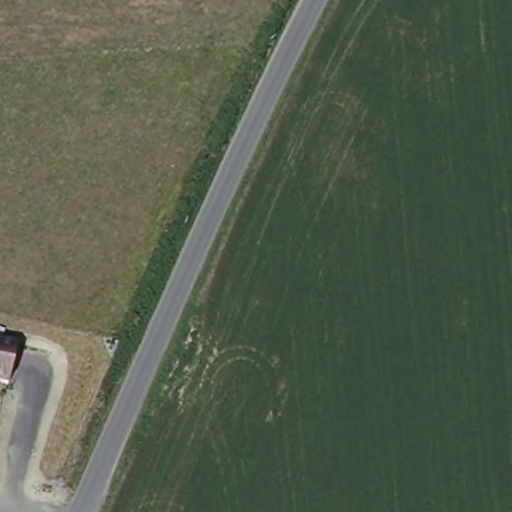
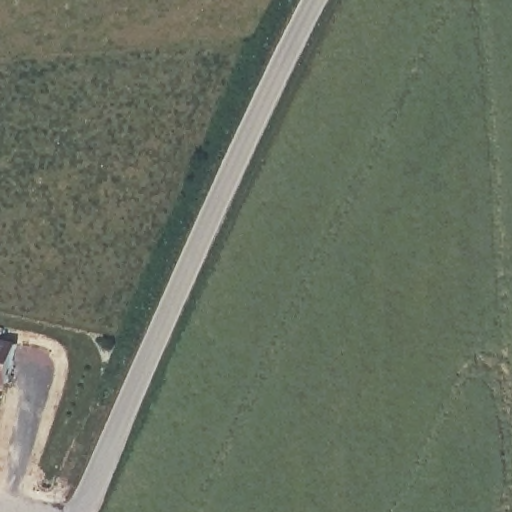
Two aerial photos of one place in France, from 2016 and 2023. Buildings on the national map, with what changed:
unchanged [(22,346),(11,382),(0,380),(0,341),(22,346)]

